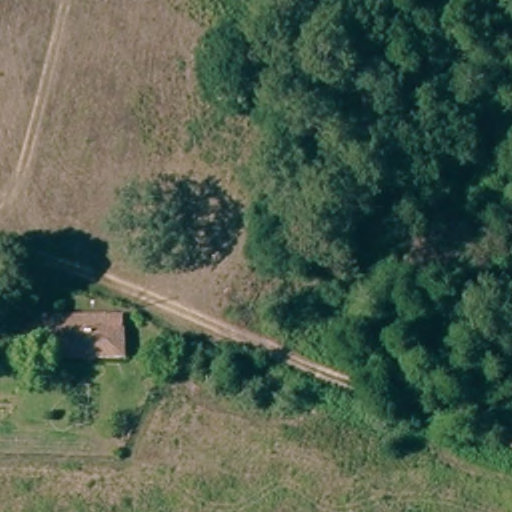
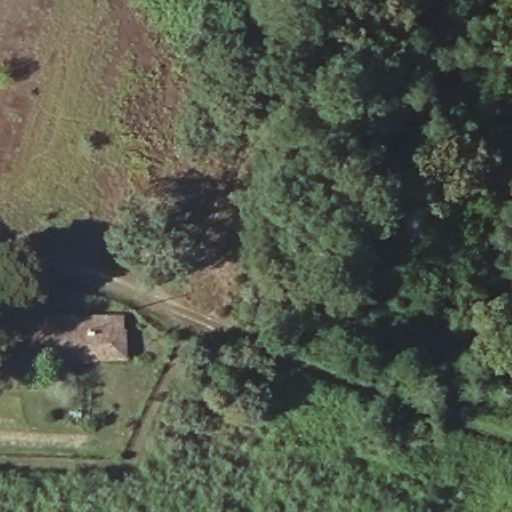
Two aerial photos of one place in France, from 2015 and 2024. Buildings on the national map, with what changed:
unchanged [(29,362),(29,339),(47,338),(47,326),(106,326),(107,362),(29,362)]

